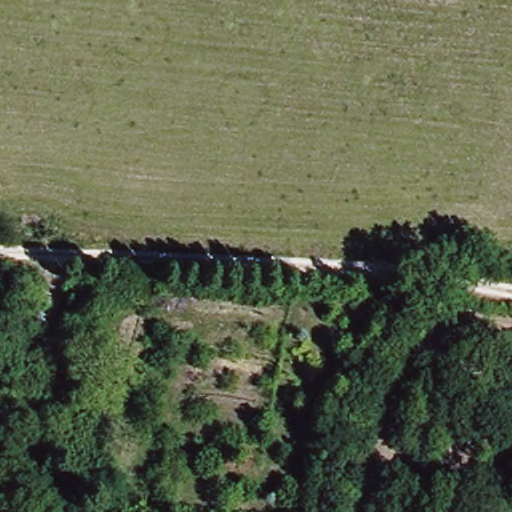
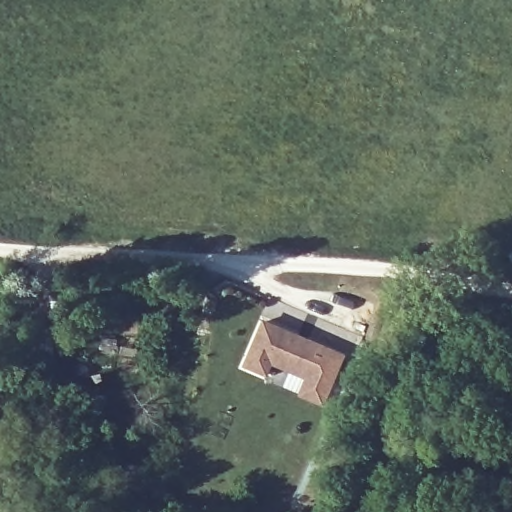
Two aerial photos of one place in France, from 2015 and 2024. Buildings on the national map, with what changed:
new [(346,355),(324,408),(297,397),(303,381),(272,366),(266,378),(243,367),(262,320),(346,355)]

